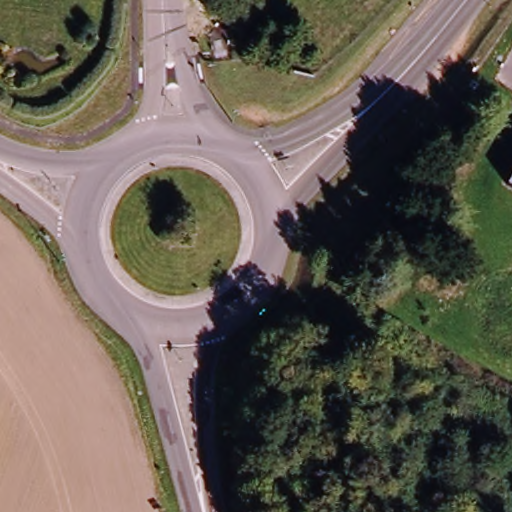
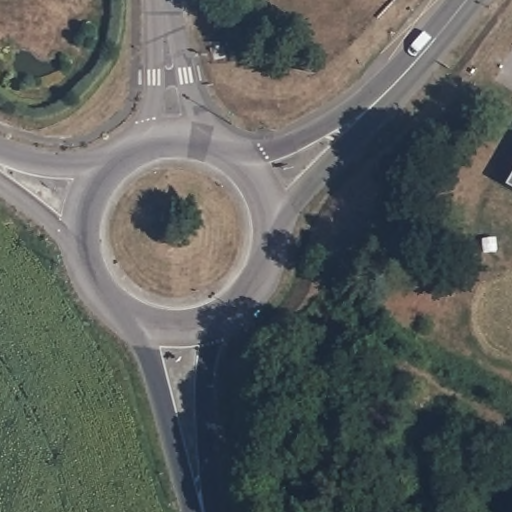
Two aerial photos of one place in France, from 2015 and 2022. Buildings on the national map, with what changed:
unchanged [(507,186),(512,177),(512,189),(507,186)]

